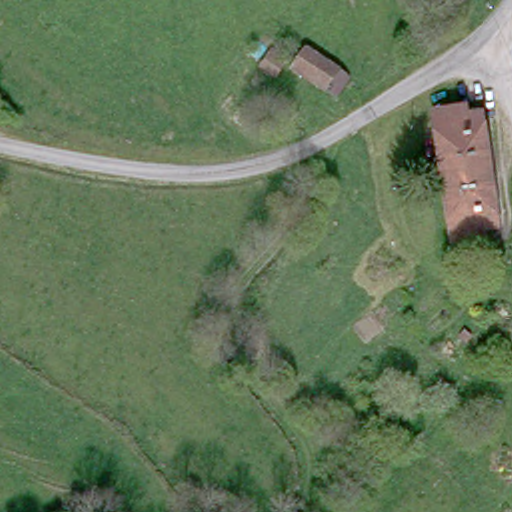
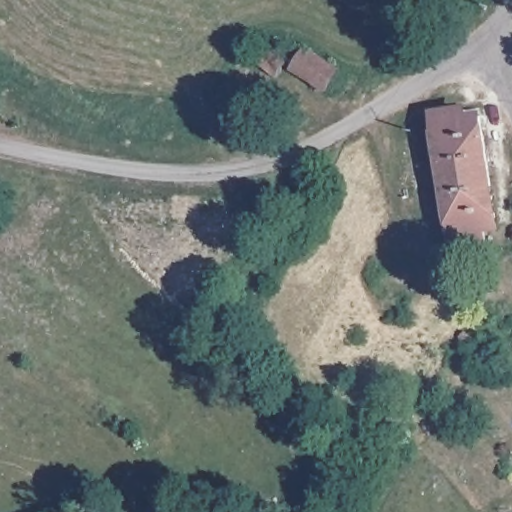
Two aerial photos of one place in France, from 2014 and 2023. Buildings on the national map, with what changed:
unchanged [(325,88),(285,63),(277,76),(255,61),(269,44),(283,54),(296,40),(340,63),(325,88)]
unchanged [(467,109),(468,115),(483,114),(495,226),(479,228),(480,236),(450,239),(436,111),(467,109)]

